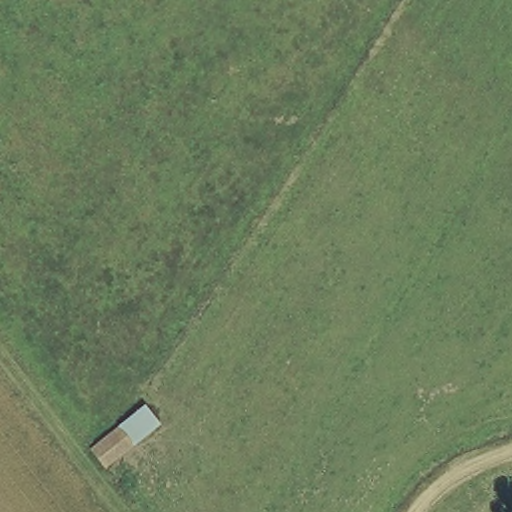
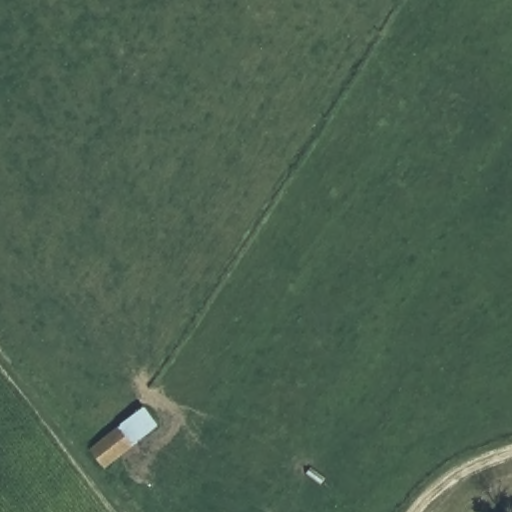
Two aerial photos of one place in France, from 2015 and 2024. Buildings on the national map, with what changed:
unchanged [(106,473),(88,448),(148,401),(166,426),(106,473)]

